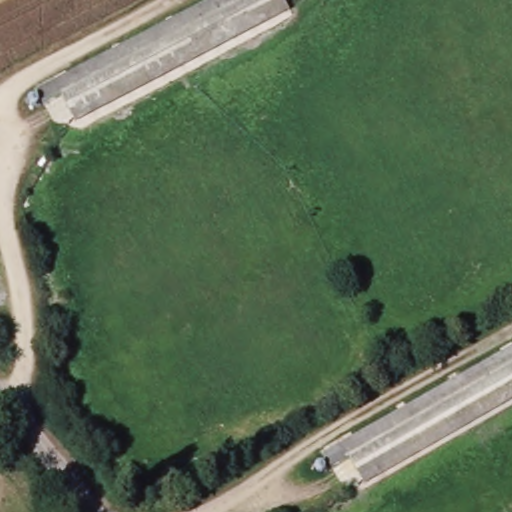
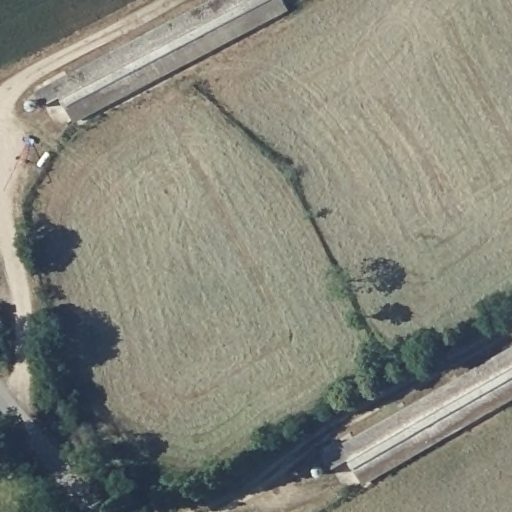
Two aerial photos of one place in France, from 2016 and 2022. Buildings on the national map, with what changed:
unchanged [(290,13),(78,122),(66,100),(47,109),(40,95),(224,0),(284,0),(290,12),(290,13)]
unchanged [(355,458),(336,469),(329,457),(512,351),(512,401),(368,482),(355,458)]

